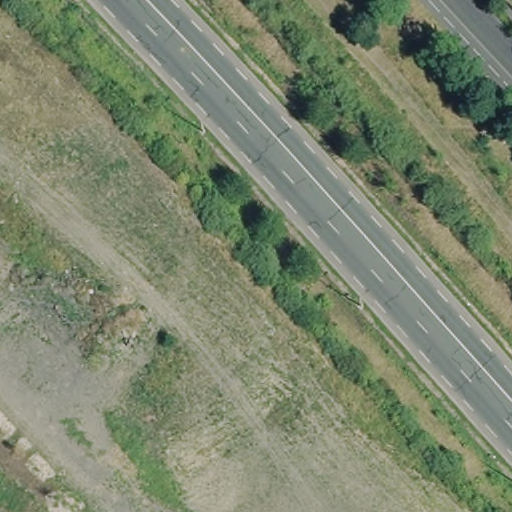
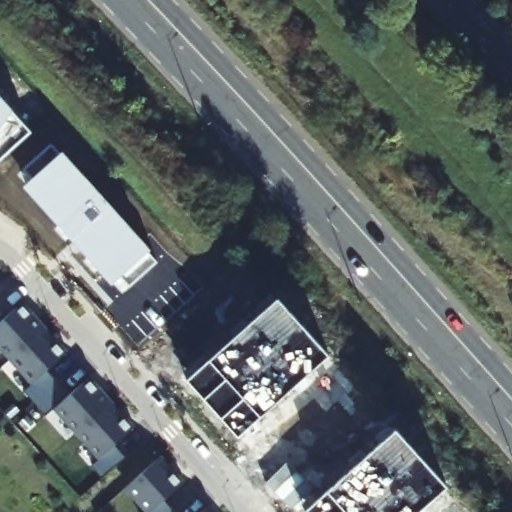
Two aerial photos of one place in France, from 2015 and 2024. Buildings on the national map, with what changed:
new [(0,159),(0,95),(31,132),(0,159)]
new [(61,150),(151,249),(158,258),(131,283),(123,273),(111,284),(22,186),(33,176),(26,168),(54,144),(61,150)]
new [(329,354),(261,416),(239,436),(188,379),(210,358),(278,298),(329,354)]
new [(8,357),(0,349),(0,319),(8,312),(30,337),(8,357)]
new [(30,382),(8,357),(30,337),(53,362),(30,382)]
new [(74,387),(97,412),(74,432),(52,407),(74,387)]
new [(97,412),(119,437),(97,457),(74,432),(97,412)]
new [(417,512),(306,512),(306,511),(328,490),(396,429),(446,486),(417,512)]
new [(168,492),(147,512),(146,512),(123,486),(146,466),(168,492)]

